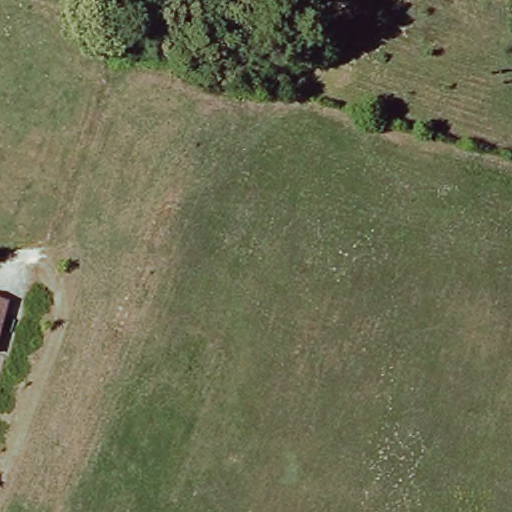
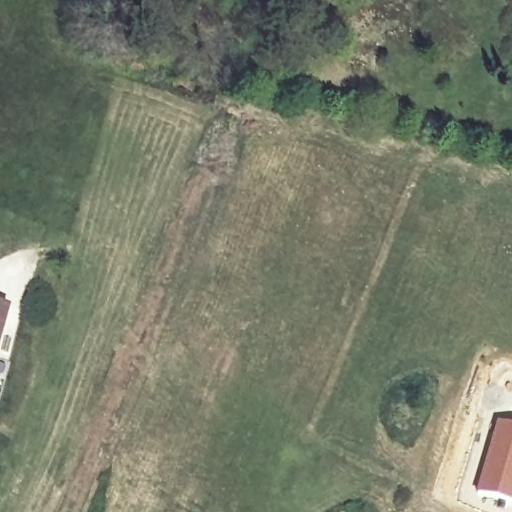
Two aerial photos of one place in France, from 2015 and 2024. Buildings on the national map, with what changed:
unchanged [(9,307),(0,338),(0,304),(9,307)]
new [(512,426),(512,503),(477,493),(498,422),(512,426)]

